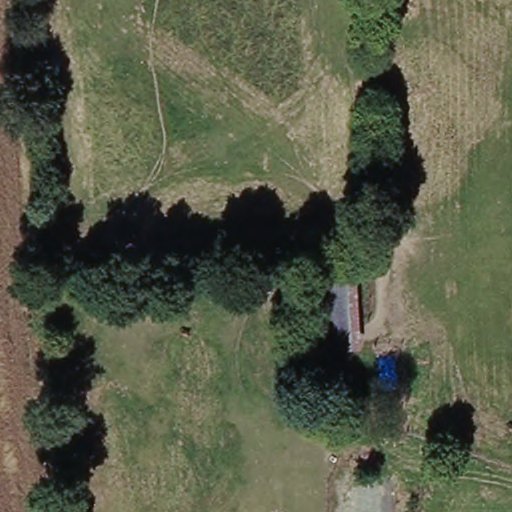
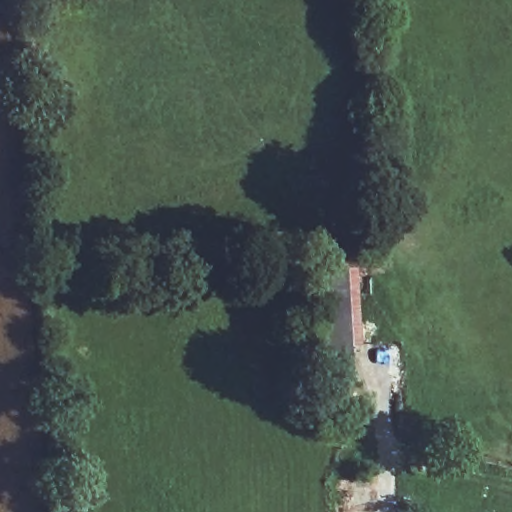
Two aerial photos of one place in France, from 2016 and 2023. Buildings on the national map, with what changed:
unchanged [(363,345),(317,350),(312,267),(357,264),(363,345)]

